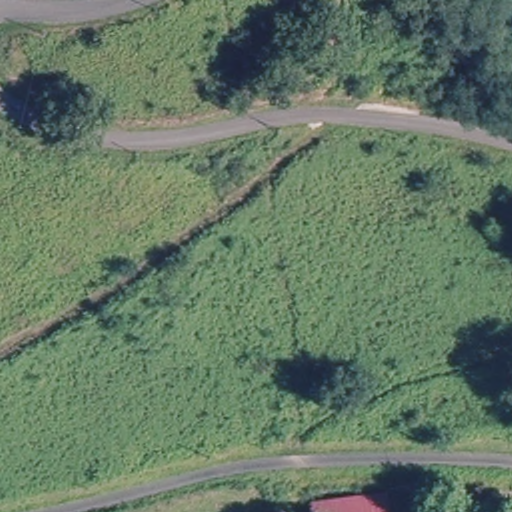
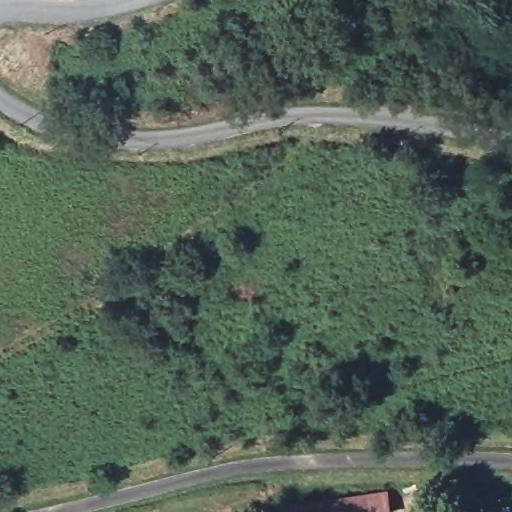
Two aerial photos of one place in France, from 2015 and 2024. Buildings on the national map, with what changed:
unchanged [(387,490),(391,512),(306,512),(305,505),(387,490)]

